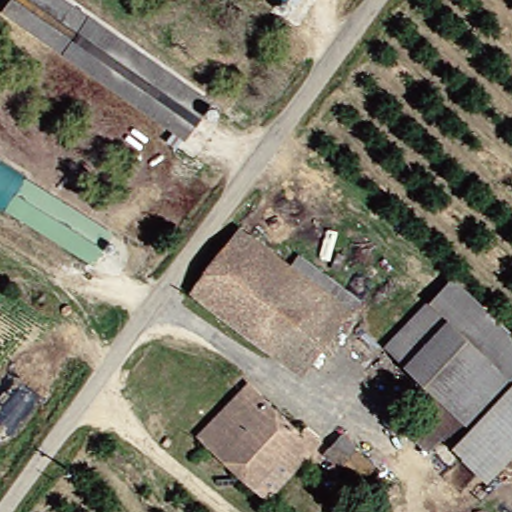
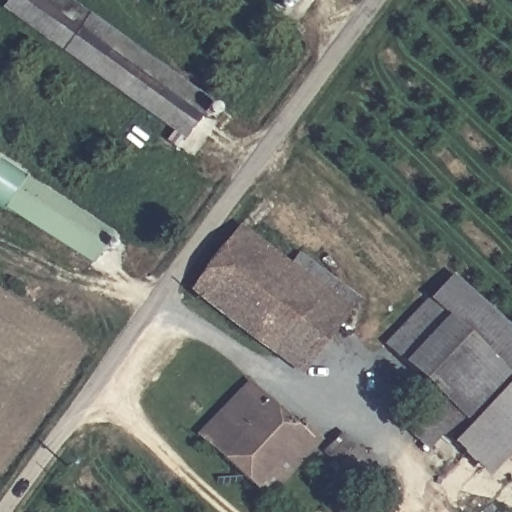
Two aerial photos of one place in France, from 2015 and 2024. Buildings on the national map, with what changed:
unchanged [(217,107),(187,149),(4,14),(14,0),(69,0),(217,107)]
unchanged [(0,159),(27,176),(117,235),(97,266),(5,209),(0,205),(0,159)]
unchanged [(281,364),(189,295),(245,221),(279,251),(285,242),(341,282),(362,302),(353,315),(305,378),(281,364)]
unchanged [(432,300),(457,278),(512,329),(512,376),(432,300)]
unchanged [(439,434),(424,450),(403,428),(435,395),(389,347),(432,300),(512,376),(512,389),(454,450),(439,434)]
unchanged [(512,389),(512,447),(481,477),(454,450),(512,389)]
unchanged [(300,437),(306,430),(320,443),(290,478),(275,465),(256,482),(199,440),(244,390),(300,437)]
unchanged [(370,488),(348,469),(336,455),(353,440),(367,455),(388,472),(370,488)]

